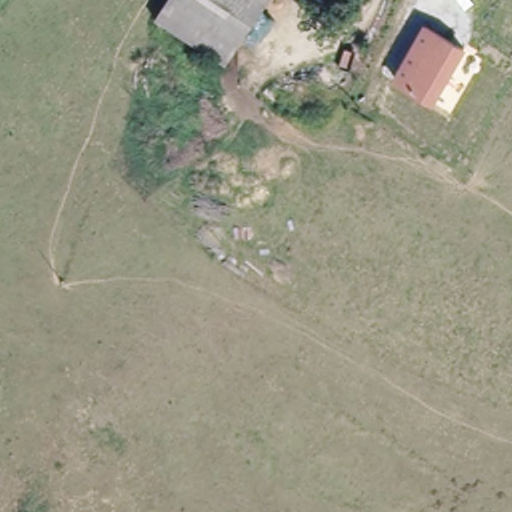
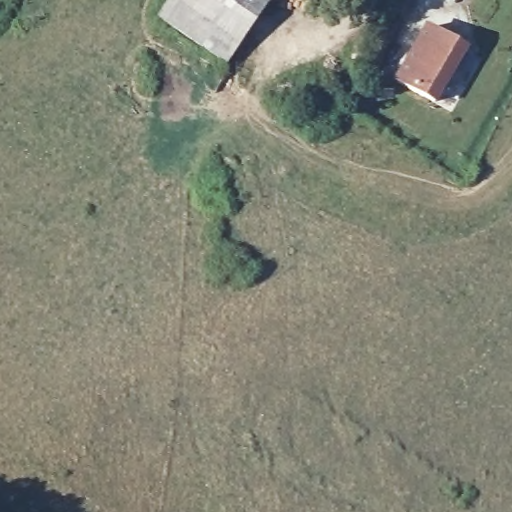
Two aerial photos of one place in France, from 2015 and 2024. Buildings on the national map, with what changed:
unchanged [(225,66),(155,18),(168,0),(270,0),(225,66)]
unchanged [(430,17),(439,21),(434,30),(425,25),(430,17)]
unchanged [(420,99),(402,79),(423,31),(463,50),(440,108),(420,99)]

